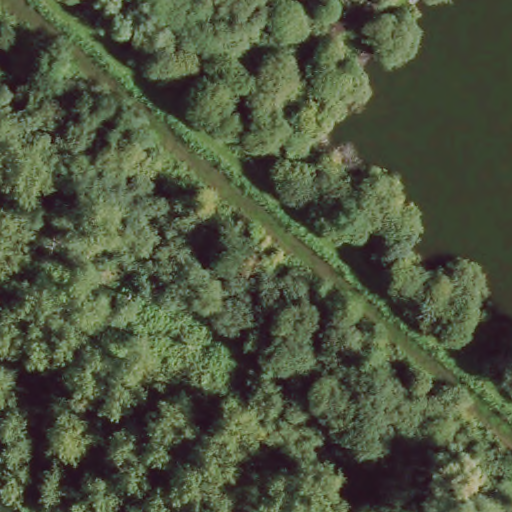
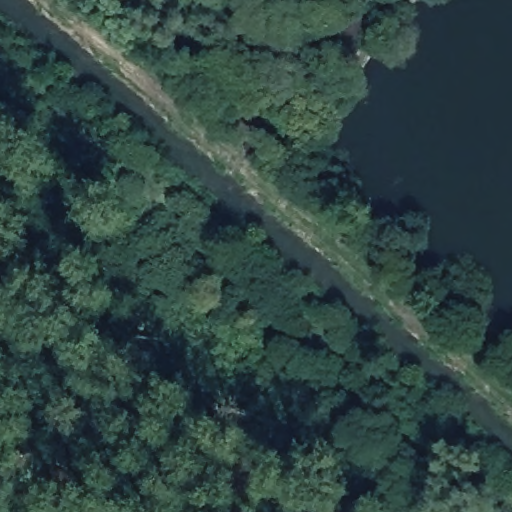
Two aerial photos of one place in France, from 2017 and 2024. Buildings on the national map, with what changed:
unchanged [(303,436),(325,454),(305,477),(284,458),(303,436)]

